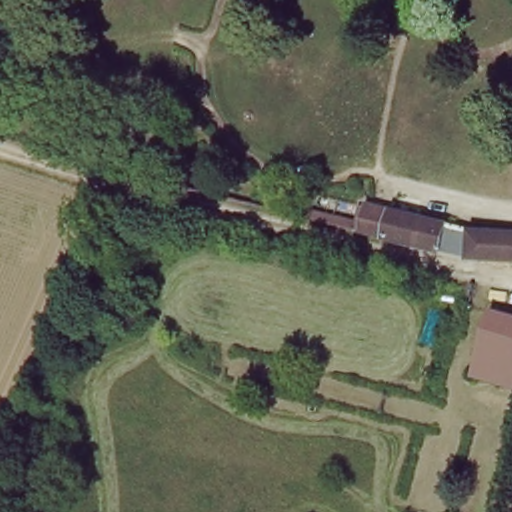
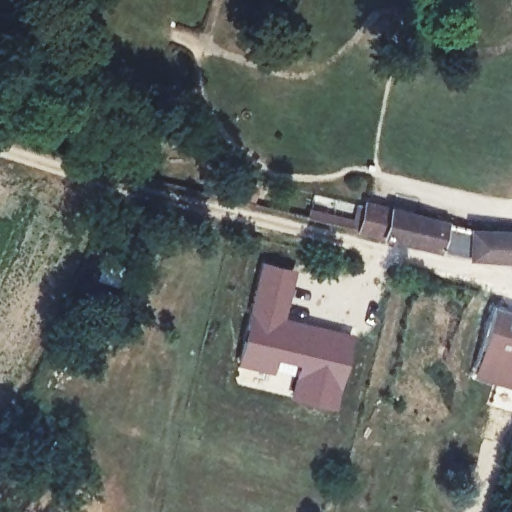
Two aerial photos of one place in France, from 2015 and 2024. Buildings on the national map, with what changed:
unchanged [(391,206),(449,222),(471,228),(512,230),(512,263),(467,261),(468,255),(441,249),(440,253),(382,239),(358,233),(351,231),(359,200),(366,200),(391,206)]
new [(261,260),(299,269),(288,317),(358,336),(354,357),(348,355),(336,403),(341,404),(339,413),(289,400),(293,376),(237,365),(261,260)]
unchanged [(493,312),(512,316),(512,383),(479,375),(493,312)]

